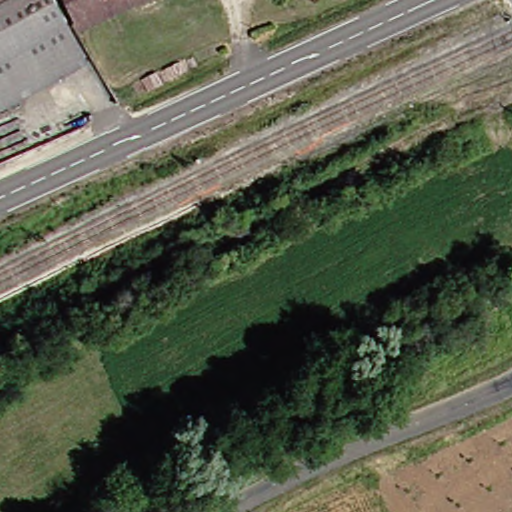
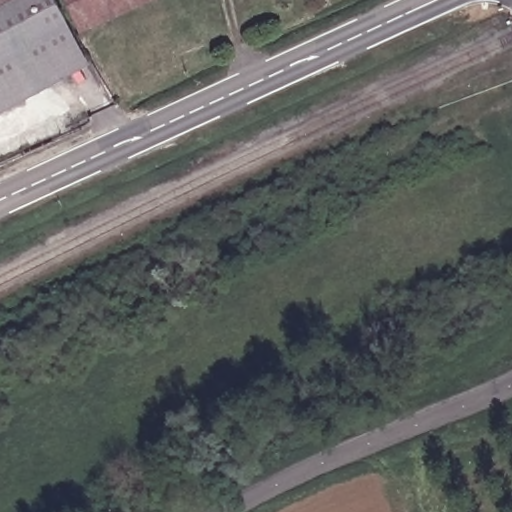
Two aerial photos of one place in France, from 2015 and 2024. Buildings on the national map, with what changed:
unchanged [(0,54),(0,0),(64,0),(74,15),(0,54)]
unchanged [(68,0),(137,0),(85,30),(68,0)]
unchanged [(0,106),(0,54),(74,15),(99,54),(0,106)]

